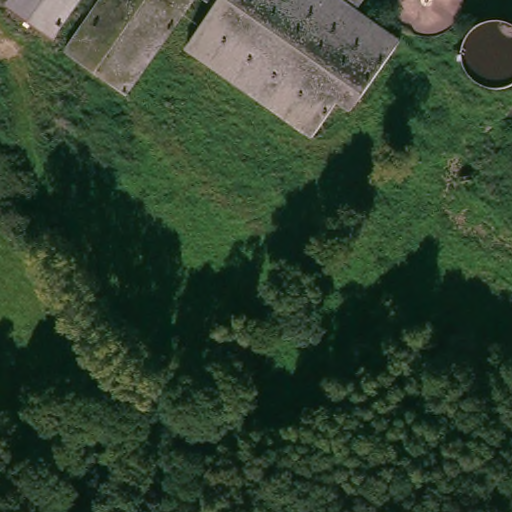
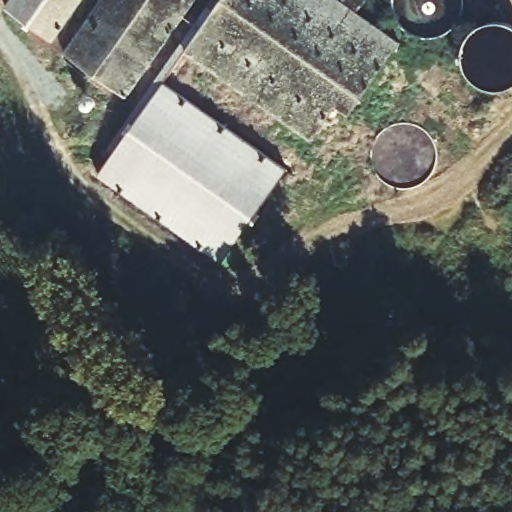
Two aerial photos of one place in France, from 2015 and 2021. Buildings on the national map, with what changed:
unchanged [(53,41),(2,8),(8,0),(82,0),(53,41)]
unchanged [(69,44),(101,0),(199,0),(131,89),(69,44)]
unchanged [(360,10),(391,32),(403,42),(356,107),(347,99),(317,140),(286,117),(200,51),(193,45),(224,7),(215,0),(368,0),(360,10)]
new [(99,176),(165,82),(286,170),(222,262),(99,176)]

